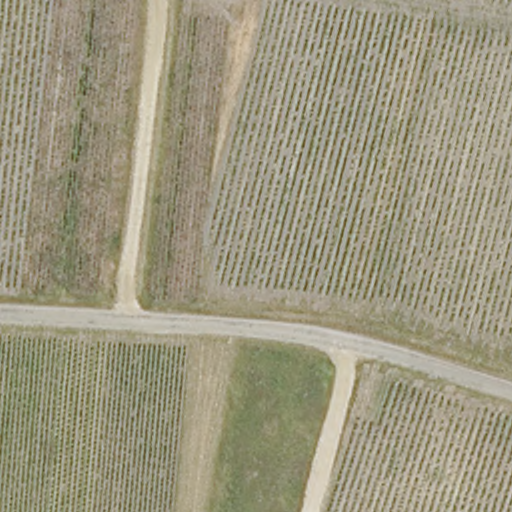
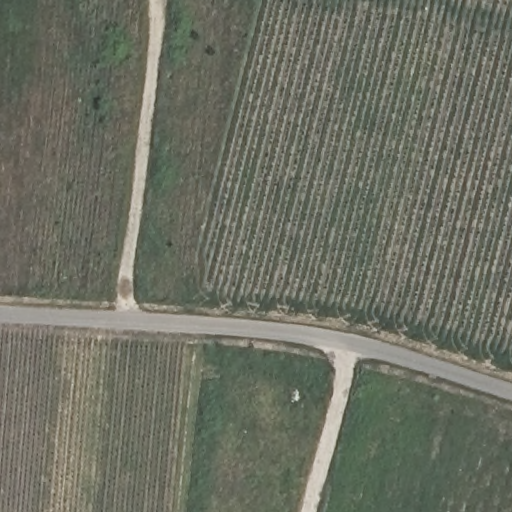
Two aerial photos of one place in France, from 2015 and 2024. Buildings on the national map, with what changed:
unchanged [(367,378),(361,394),(348,390),(357,373),(367,378)]

